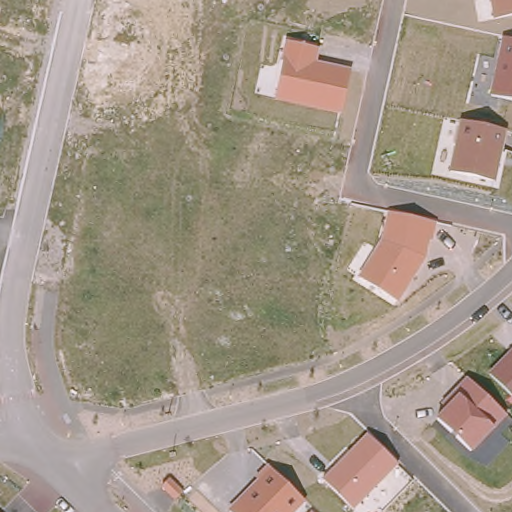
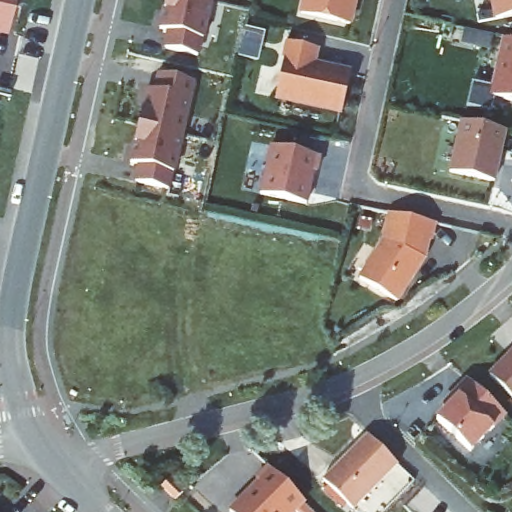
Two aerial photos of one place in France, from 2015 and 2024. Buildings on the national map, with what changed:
new [(13,0),(6,32),(0,31),(0,0),(13,0)]
new [(211,0),(203,33),(202,33),(198,50),(165,43),(169,25),(161,24),(165,0),(211,0)]
new [(300,13),(303,0),(357,0),(352,25),(300,13)]
unchanged [(490,0),(512,0),(512,16),(494,20),(490,0)]
unchanged [(503,37),(512,39),(512,101),(491,96),(503,37)]
unchanged [(319,48),(317,63),(350,69),(342,115),(275,102),(286,41),(319,48)]
new [(148,81),(157,83),(160,66),(193,73),(190,90),(191,91),(183,128),(140,119),(148,81)]
new [(140,119),(183,128),(175,165),(173,165),(169,182),(137,175),(141,157),(132,155),(140,119)]
unchanged [(507,131),(496,182),(449,172),(460,120),(507,131)]
new [(277,140),(321,149),(317,165),(314,165),(307,197),(267,189),(277,140)]
unchanged [(436,223),(433,241),(429,240),(426,260),(398,302),(358,277),(382,240),(388,212),(436,223)]
unchanged [(512,349),(512,396),(489,375),(512,349)]
unchanged [(507,416),(494,430),(470,452),(435,418),(445,407),(441,403),(467,377),(507,416)]
unchanged [(398,464),(354,510),(323,480),(367,435),(398,464)]
unchanged [(255,477),(267,465),(306,502),(296,512),(230,512),(228,510),(258,480),(255,477)]

